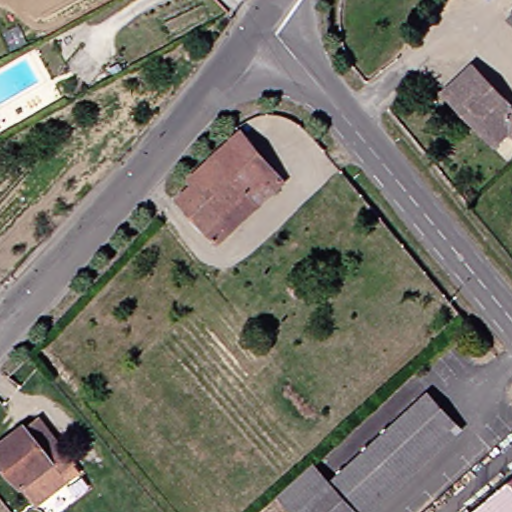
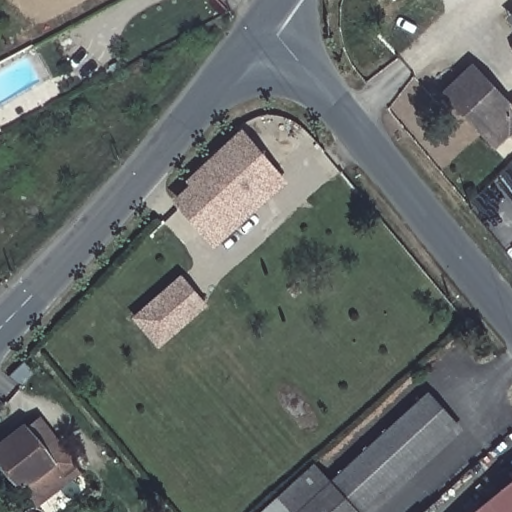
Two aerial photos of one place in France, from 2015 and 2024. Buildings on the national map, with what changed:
unchanged [(512,30),(499,16),(512,5),(512,30)]
unchanged [(469,68),(512,113),(512,151),(498,135),(486,146),(475,134),(450,107),(438,94),(469,68)]
new [(512,104),(512,113),(507,108),(512,104)]
unchanged [(226,229),(210,243),(173,199),(240,139),(270,174),(229,212),(236,219),(226,229)]
new [(176,273),(209,310),(164,351),(131,313),(176,273)]
unchanged [(455,429),(381,499),(374,491),(442,430),(411,399),(421,390),(455,429)]
unchanged [(442,430),(374,491),(351,512),(287,512),(411,399),(442,430)]
unchanged [(27,506),(17,489),(0,462),(0,438),(21,424),(27,434),(45,423),(77,468),(61,479),(64,483),(27,506)]
unchanged [(474,506),(512,475),(512,512),(479,512),(474,506)]

